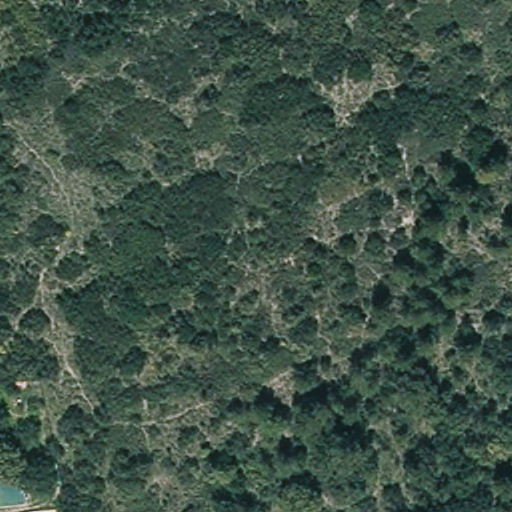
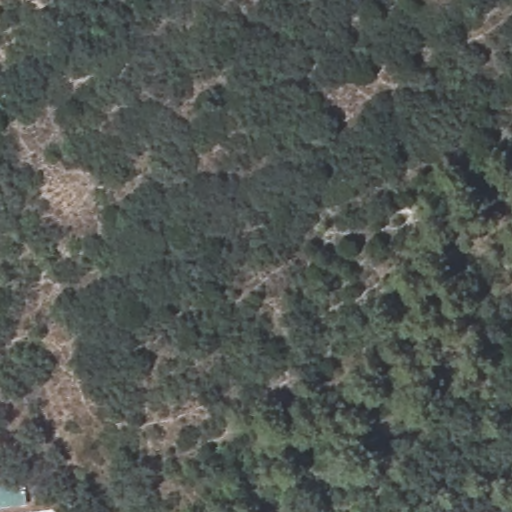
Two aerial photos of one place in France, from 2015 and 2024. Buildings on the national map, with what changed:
unchanged [(0,479),(21,476),(25,502),(0,505),(0,479)]

